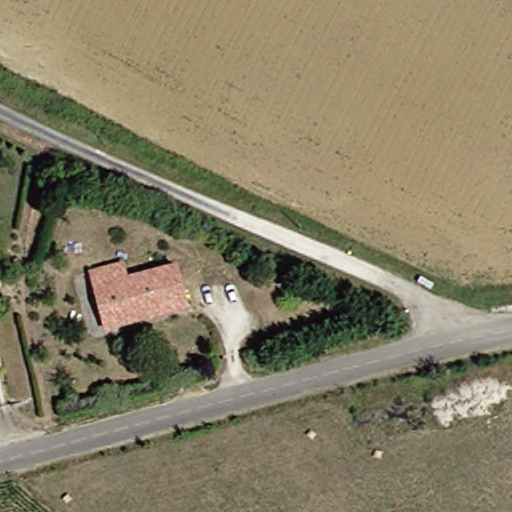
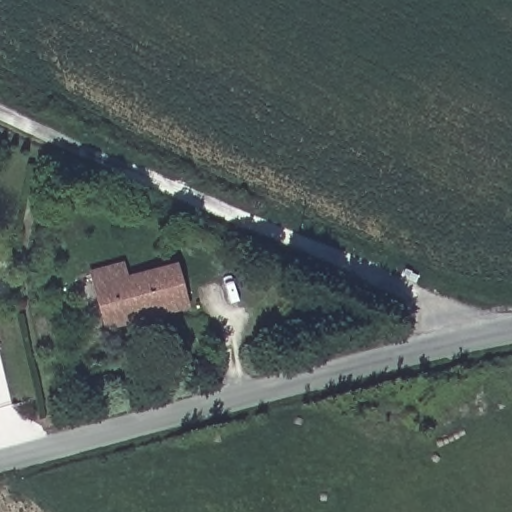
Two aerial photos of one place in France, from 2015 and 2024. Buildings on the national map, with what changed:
unchanged [(107,325),(96,284),(93,270),(125,262),(129,276),(179,263),(190,305),(160,312),(134,318),(107,325)]

